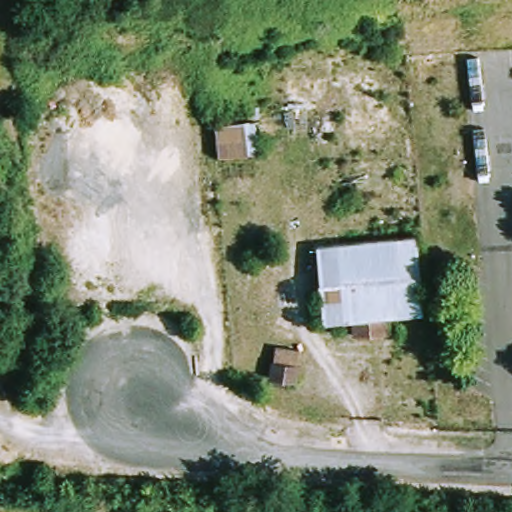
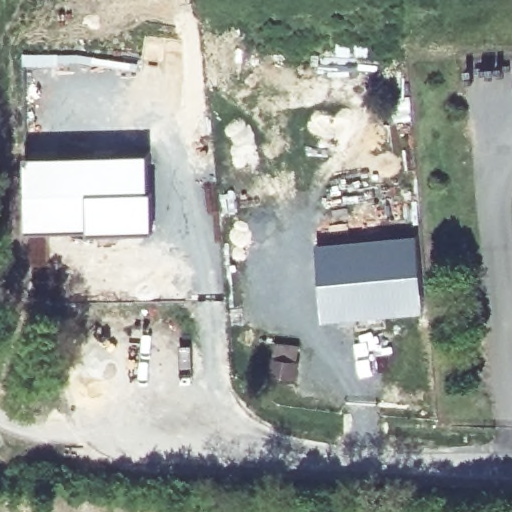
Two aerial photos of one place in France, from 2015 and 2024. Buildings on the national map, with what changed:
new [(150,149),(155,227),(104,228),(72,226),(26,228),(24,154),(150,149)]
new [(47,235),(47,265),(29,265),(29,236),(47,235)]
unchanged [(325,320),(320,246),(417,238),(425,309),(425,313),(416,314),(325,320)]
new [(273,358),(274,358),(276,343),(300,347),(297,361),(298,361),(296,377),(271,373),(273,358)]

